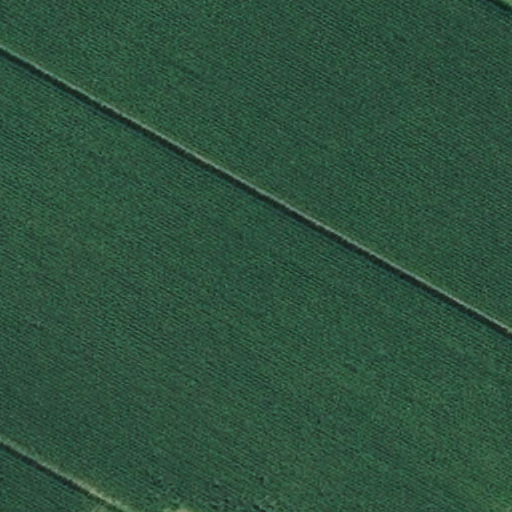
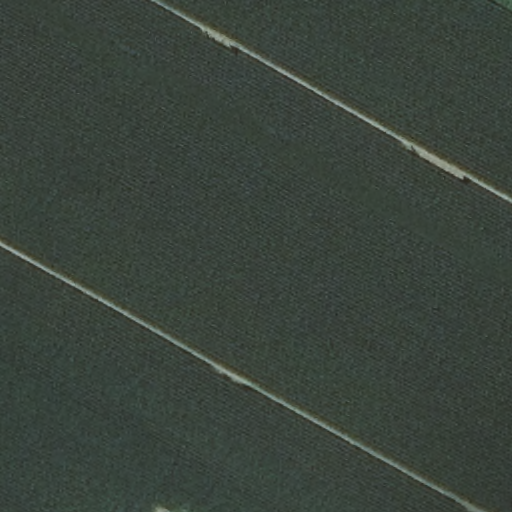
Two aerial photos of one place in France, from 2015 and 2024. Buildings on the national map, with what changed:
[]

